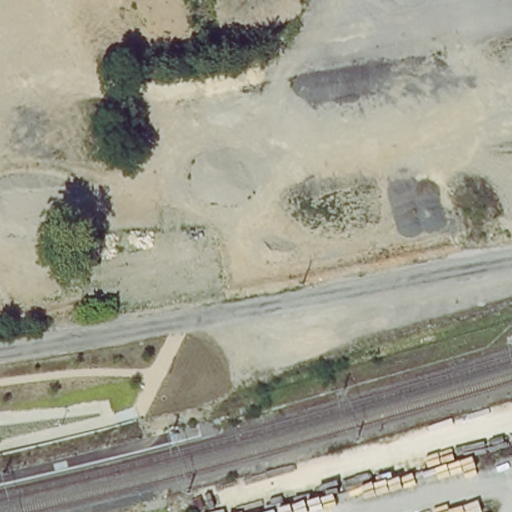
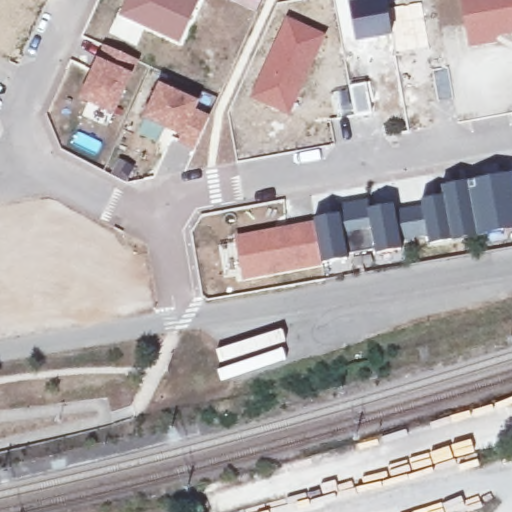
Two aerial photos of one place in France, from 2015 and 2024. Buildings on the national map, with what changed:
new [(197,0),(178,44),(115,17),(123,0),(197,0)]
new [(233,0),(262,0),(257,10),(233,0)]
new [(386,0),(392,36),(355,42),(346,0),(349,0),(386,0)]
new [(468,39),(460,0),(512,0),(512,31),(468,39)]
new [(285,15),(326,34),(290,116),(248,98),(285,15)]
new [(469,44),(468,39),(491,35),(492,39),(469,44)]
new [(136,60),(111,112),(80,98),(105,46),(136,60)]
new [(348,88),(347,85),(368,81),(374,111),(353,115),(352,112),(338,115),(333,91),(348,88)]
new [(179,134),(144,118),(144,117),(158,86),(180,96),(195,102),(191,110),(207,118),(193,147),(176,140),(179,134)]
new [(462,241),(439,246),(437,236),(409,241),(409,245),(384,250),(384,246),(355,251),(356,255),(331,260),(323,216),(346,211),(345,201),(376,196),(378,206),(403,202),(403,207),(431,201),(430,196),(453,192),(451,183),(512,172),(512,233),(462,241)]
demolished [(499,239),(489,186),(512,182),(512,236),(499,239)]

